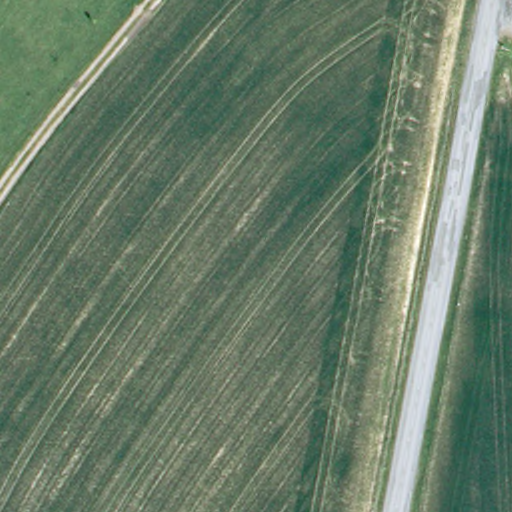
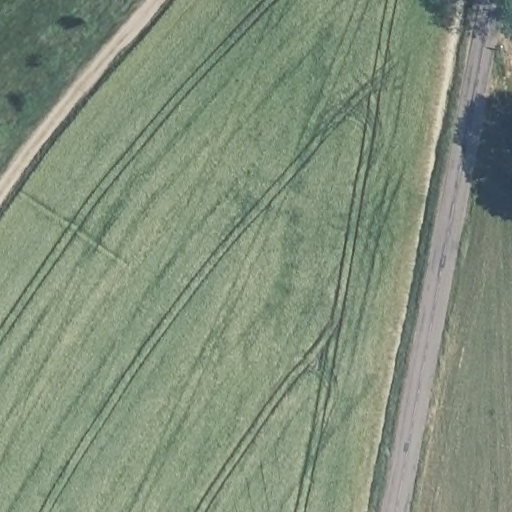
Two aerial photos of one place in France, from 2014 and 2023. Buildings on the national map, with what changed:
[]

